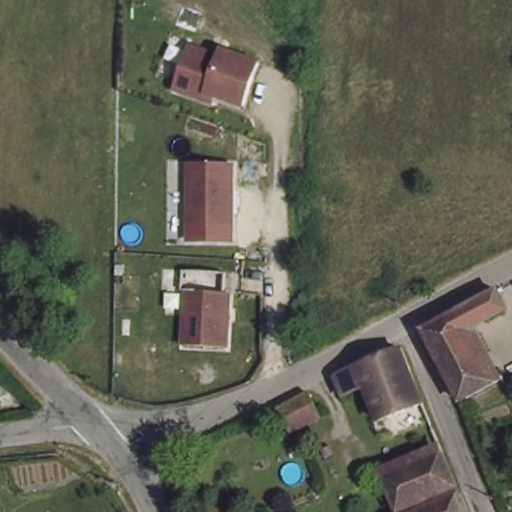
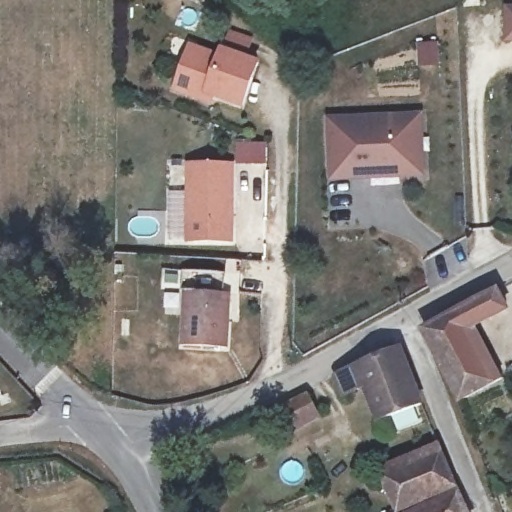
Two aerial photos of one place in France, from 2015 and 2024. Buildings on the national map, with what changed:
new [(511,7),(512,8),(512,40),(509,40),(511,7)]
unchanged [(208,95),(178,83),(194,41),(223,53),(226,46),(261,60),(244,102),(216,91),(214,98),(208,95)]
new [(334,176),(333,117),(424,114),(427,173),(404,174),(373,175),(334,176)]
unchanged [(238,161),(239,219),(224,220),(224,238),(193,236),(190,160),(238,161)]
unchanged [(233,290),(228,346),(186,342),(191,287),(233,290)]
unchanged [(457,405),(424,331),(465,311),(496,296),(504,315),(474,331),(498,384),(457,405)]
unchanged [(419,400),(379,419),(364,388),(344,398),(333,374),(354,364),(397,344),(419,400)]
unchanged [(326,415),(294,430),(284,409),(317,393),(326,415)]
unchanged [(383,481),(376,464),(433,440),(440,458),(383,481)]
unchanged [(456,495),(414,512),(394,512),(383,481),(440,458),(456,495)]
unchanged [(456,495),(462,512),(414,512),(456,495)]

